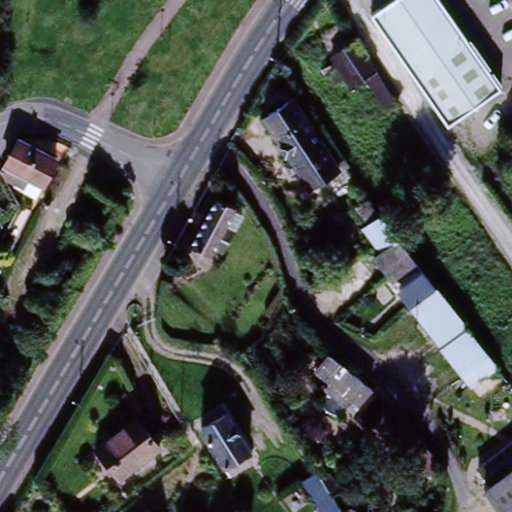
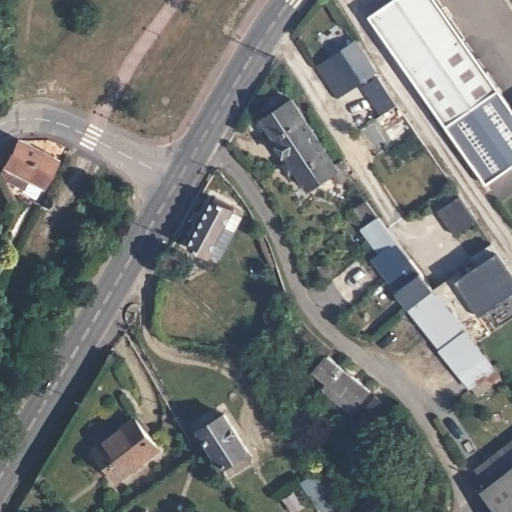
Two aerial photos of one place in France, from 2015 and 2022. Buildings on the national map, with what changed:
unchanged [(440,0),(503,88),(449,126),(370,15),(390,0),(440,0)]
unchanged [(362,52),(378,76),(368,82),(353,91),(345,82),(339,86),(333,77),(330,79),(326,74),(335,68),(332,61),(357,45),(362,52)]
new [(379,78),(398,106),(382,116),(363,88),(379,78)]
new [(490,184),(449,126),(503,88),(512,102),(512,168),(490,184)]
unchanged [(344,177),(347,181),(343,183),(337,175),(311,193),(265,121),(296,101),(339,168),(344,165),(349,173),(344,177)]
unchanged [(24,196),(25,193),(18,190),(12,188),(4,174),(19,145),(21,142),(56,159),(55,161),(43,188),(38,201),(24,196)]
unchanged [(221,259),(212,254),(210,259),(190,249),(216,201),(236,211),(235,214),(243,218),(236,232),(229,245),(221,259)]
unchanged [(383,269),(376,261),(383,256),(364,231),(368,228),(355,210),(368,203),(375,211),(380,219),(390,231),(396,240),(398,243),(410,258),(411,259),(429,282),(435,290),(412,308),(390,279),(389,277),(383,269)]
new [(463,276),(479,266),(474,259),(496,245),(512,268),(512,294),(481,315),(478,310),(461,323),(435,290),(460,272),(463,276)]
unchanged [(503,377),(506,381),(501,386),(498,381),(479,395),(472,387),(412,308),(435,290),(479,346),(497,369),(500,373),(503,377)]
unchanged [(372,394),(358,412),(349,404),(345,410),(324,393),(328,388),(315,377),(329,360),(372,394)]
unchanged [(233,481),(226,470),(202,433),(226,418),(250,454),(234,465),(241,475),(233,481)]
unchanged [(138,422),(160,453),(121,483),(98,452),(138,422)]
unchanged [(492,476),(506,466),(504,462),(512,456),(512,484),(503,491),(492,476)]
unchanged [(324,485),(338,506),(328,512),(316,512),(300,489),(318,476),(324,485)]
unchanged [(512,484),(512,512),(496,512),(488,502),(491,501),(503,491),(512,484)]

